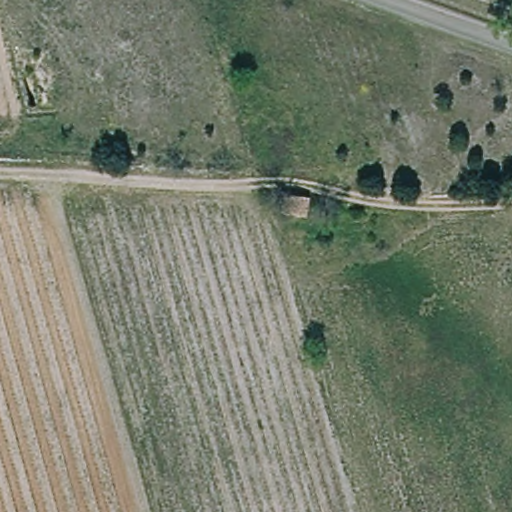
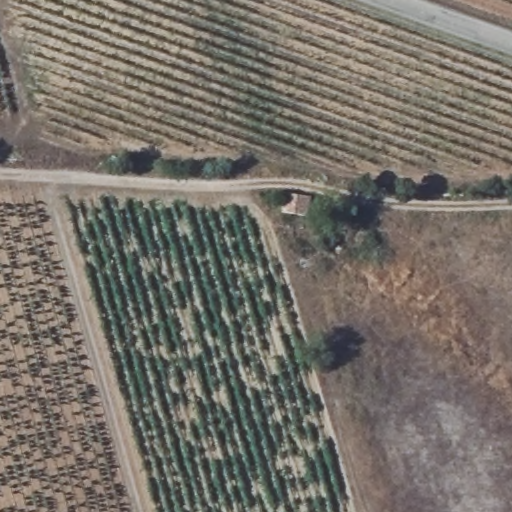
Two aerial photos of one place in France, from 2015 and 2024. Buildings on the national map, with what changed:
unchanged [(313,200),(313,218),(283,216),(285,197),(313,200)]

